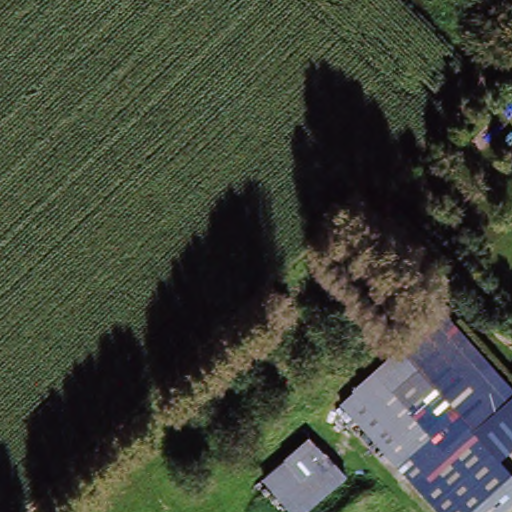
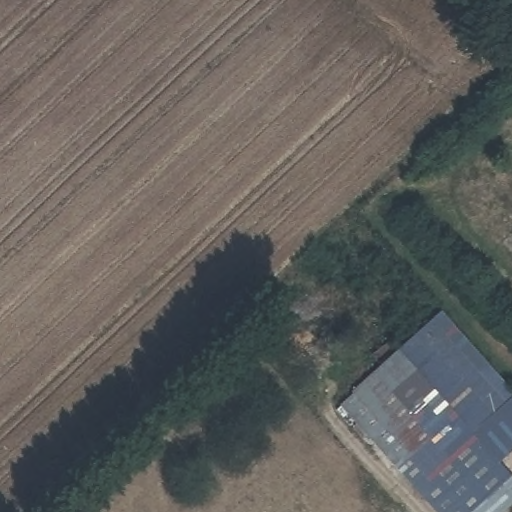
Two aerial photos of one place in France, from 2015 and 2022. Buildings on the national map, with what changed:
unchanged [(512,460),(504,467),(512,476),(512,512),(438,512),(346,412),(440,316),(512,393),(512,460)]
demolished [(314,512),(286,512),(260,481),(306,441),(346,482),(314,512)]

